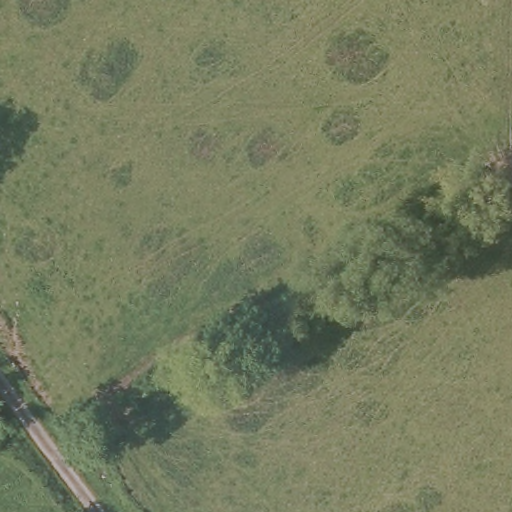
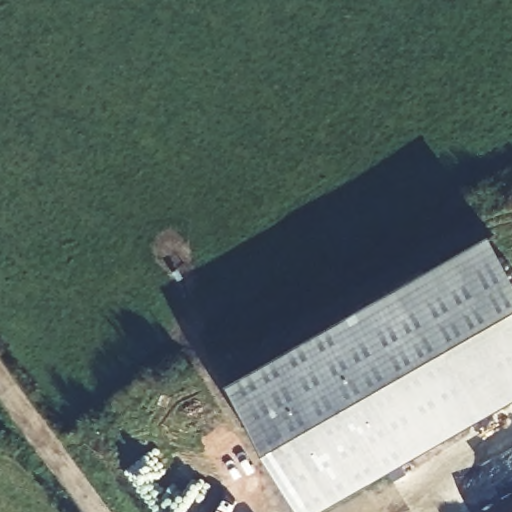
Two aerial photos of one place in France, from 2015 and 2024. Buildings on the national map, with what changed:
new [(512,265),(512,397),(310,512),(305,512),(233,384),(494,234),(512,265)]

